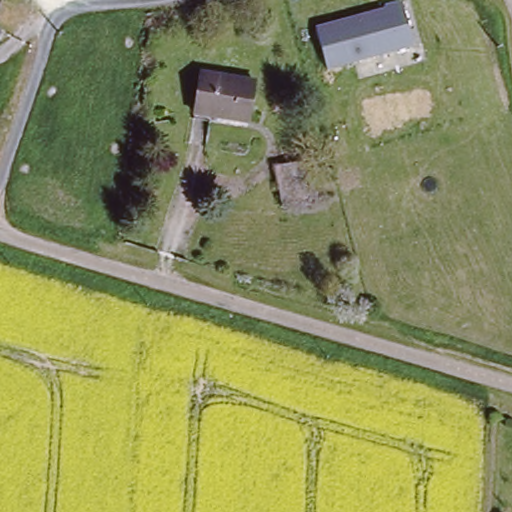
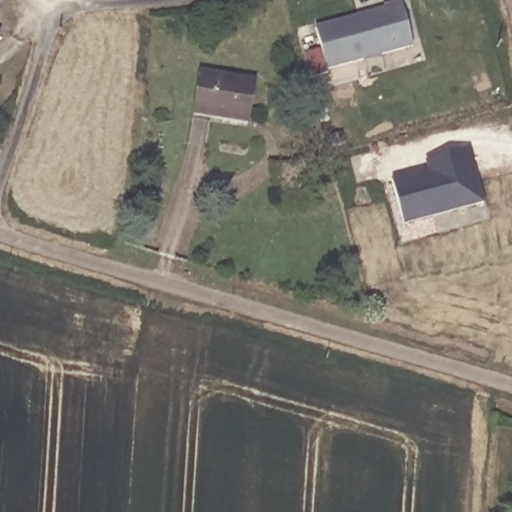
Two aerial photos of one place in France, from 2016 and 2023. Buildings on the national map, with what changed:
unchanged [(386,3),(398,0),(401,0),(413,43),(328,68),(316,24),(387,7),(386,3)]
unchanged [(0,20),(0,1),(6,4),(0,20)]
unchanged [(231,118),(199,112),(206,71),(259,80),(253,114),(253,121),(231,118)]
new [(394,179),(428,170),(426,161),(469,149),(483,204),(404,224),(394,179)]
unchanged [(303,161),(313,203),(287,209),(277,167),(303,161)]

